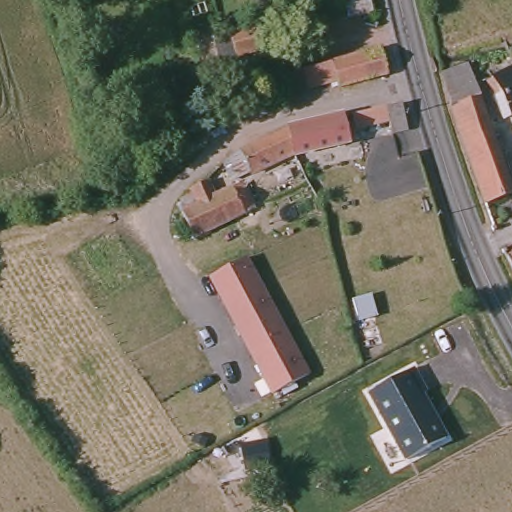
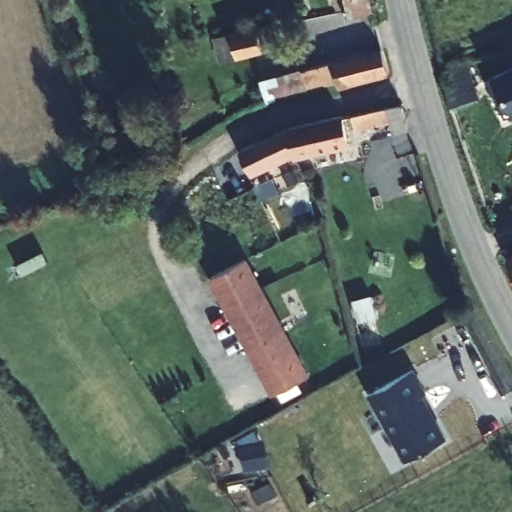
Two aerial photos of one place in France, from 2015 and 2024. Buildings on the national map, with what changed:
unchanged [(342,22),(338,0),(364,0),(368,17),(342,22)]
unchanged [(273,53),(215,68),(208,43),(267,29),(273,53)]
unchanged [(381,50),(388,75),(341,86),(338,87),(337,81),(307,90),(267,103),(260,80),(300,67),(301,71),(381,50)]
unchanged [(462,64),(510,193),(480,205),(445,107),(438,76),(437,73),(462,64)]
unchanged [(486,80),(493,78),(512,69),(512,117),(505,120),(486,80)]
unchanged [(387,139),(384,127),(350,134),(347,120),(396,109),(402,136),(387,139)]
unchanged [(288,158),(283,133),(336,121),(342,148),(289,160),(288,158)]
unchanged [(218,170),(234,157),(283,133),(288,158),(245,179),(244,177),(226,185),(218,170)]
unchanged [(188,243),(176,219),(180,217),(175,205),(187,199),(185,195),(202,187),(210,203),(236,191),(248,215),(188,243)]
unchanged [(512,255),(512,270),(506,258),(512,255)]
unchanged [(210,277),(248,257),(310,373),(271,394),(210,277)]
unchanged [(428,394),(422,397),(446,440),(405,461),(369,393),(415,369),(428,394)]

